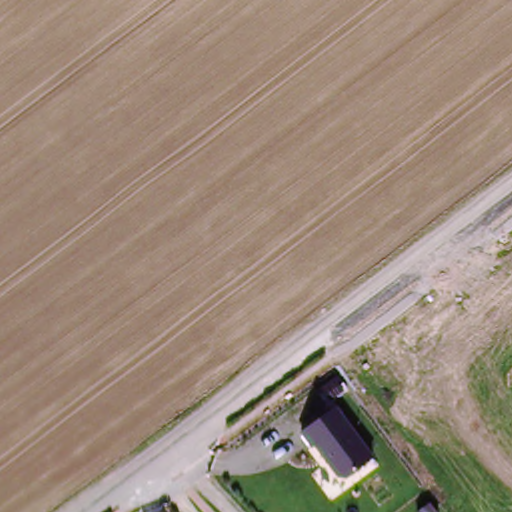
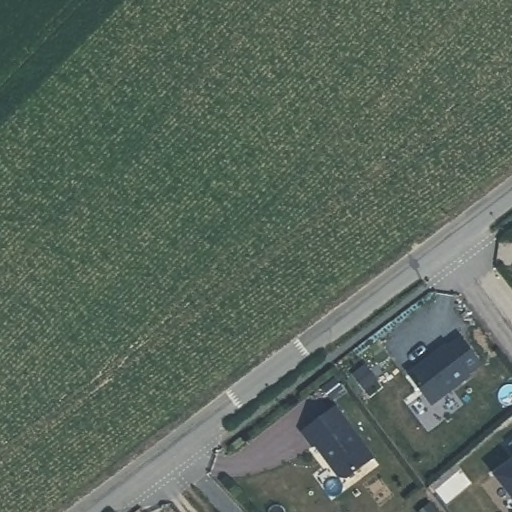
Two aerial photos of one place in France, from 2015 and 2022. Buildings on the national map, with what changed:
new [(445,345),(447,347),(460,338),(480,364),(467,374),(469,376),(430,405),(407,374),(445,345)]
unchanged [(374,461),(341,483),(315,450),(313,452),(301,435),(337,409),(374,461)]
new [(512,440),(512,455),(505,446),(512,440)]
new [(512,499),(494,477),(512,462),(512,499)]

